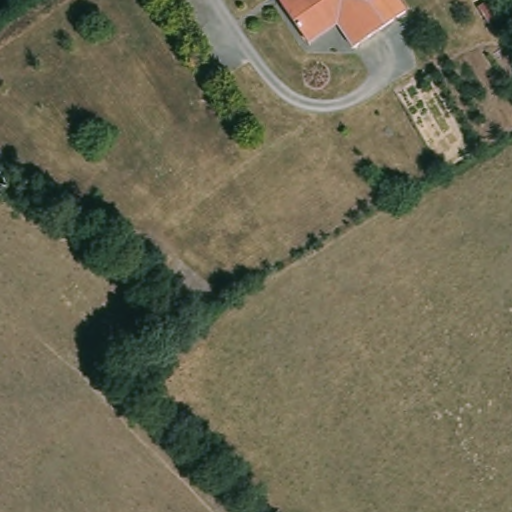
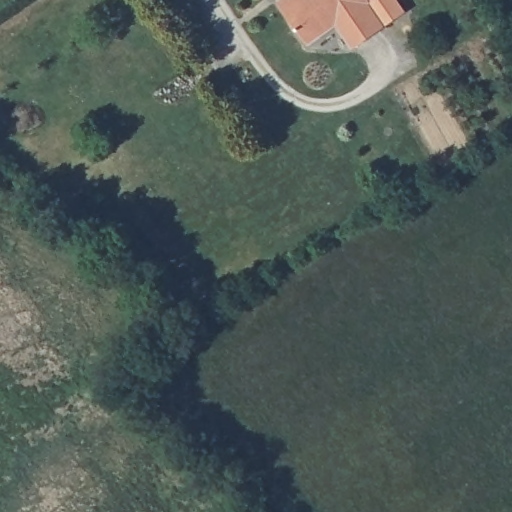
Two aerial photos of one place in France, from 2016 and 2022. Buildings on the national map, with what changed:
unchanged [(358,50),(339,22),(308,42),(281,2),(285,0),(373,0),(392,29),(358,50)]

